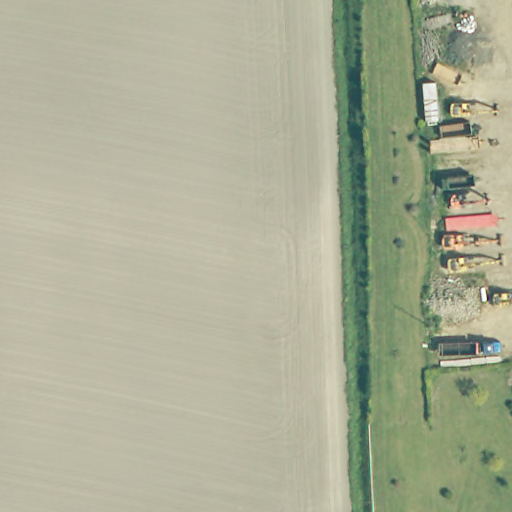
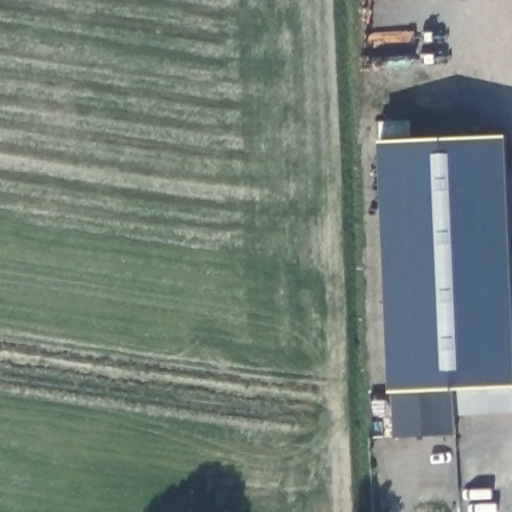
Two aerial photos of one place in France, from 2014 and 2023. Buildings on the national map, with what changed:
new [(455,416),(455,433),(396,437),(396,391),(390,391),(380,141),(507,136),(512,248),(512,412),(455,416)]

